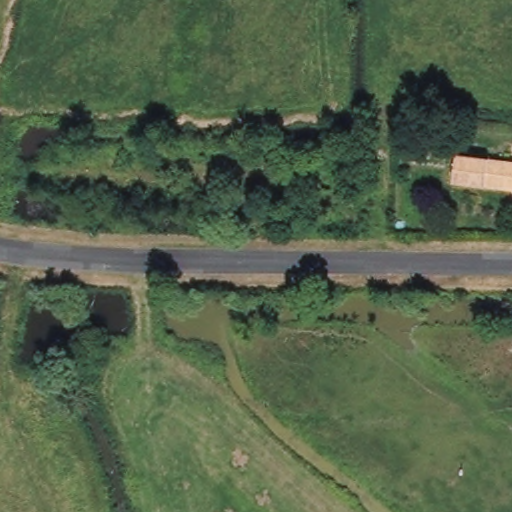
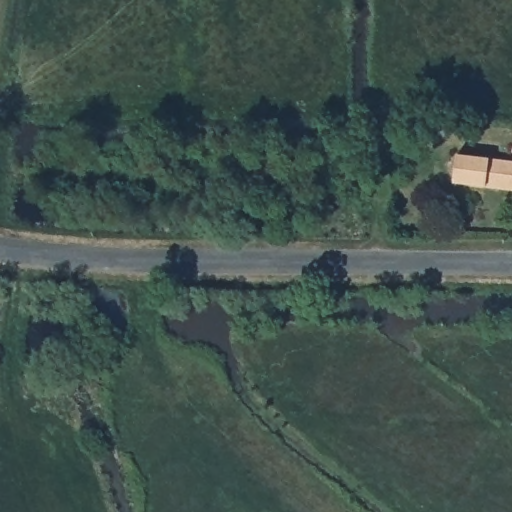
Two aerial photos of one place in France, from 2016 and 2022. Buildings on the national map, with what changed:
unchanged [(459,184),(460,157),(512,159),(512,188),(459,184)]

